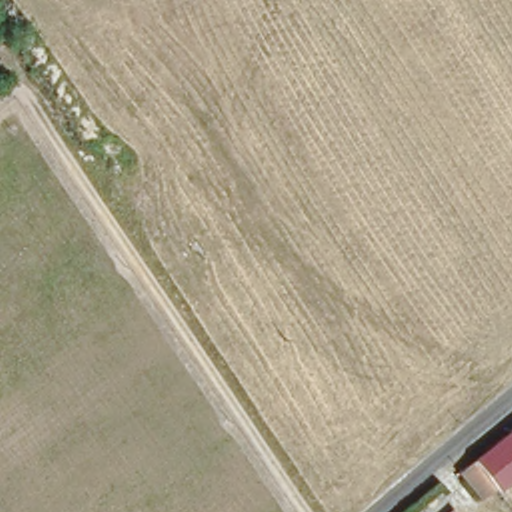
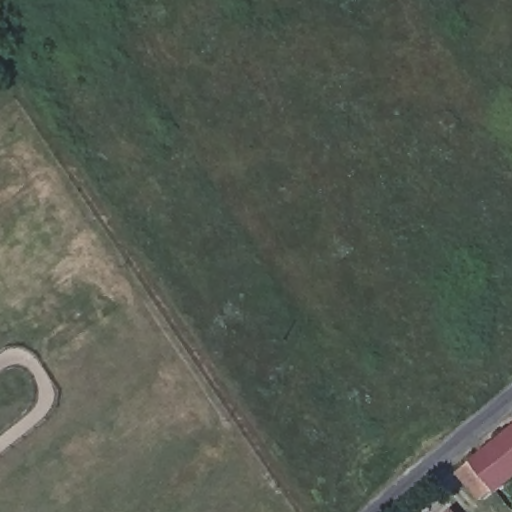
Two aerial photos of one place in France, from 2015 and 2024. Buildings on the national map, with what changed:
unchanged [(492,490),(478,500),(457,473),(512,431),(512,510),(510,512),(492,490)]

